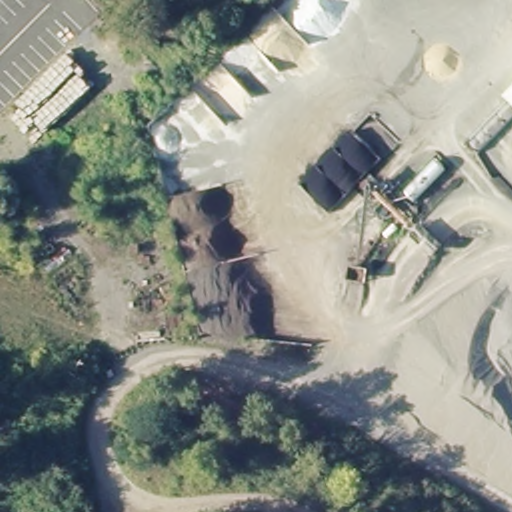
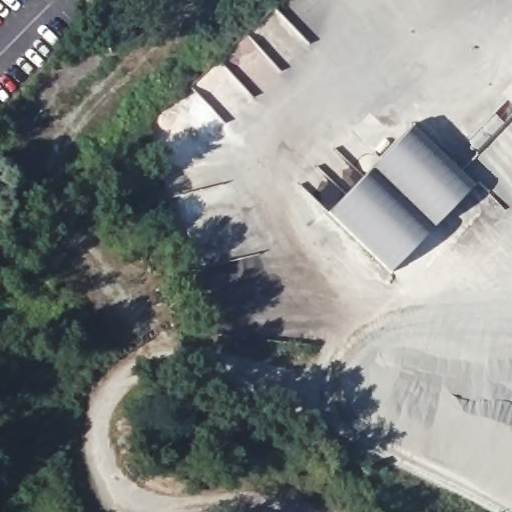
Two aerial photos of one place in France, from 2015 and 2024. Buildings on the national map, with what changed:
unchanged [(503,95),(512,87),(512,104),(503,95)]
new [(411,125),(474,185),(389,273),(326,213),(411,125)]

